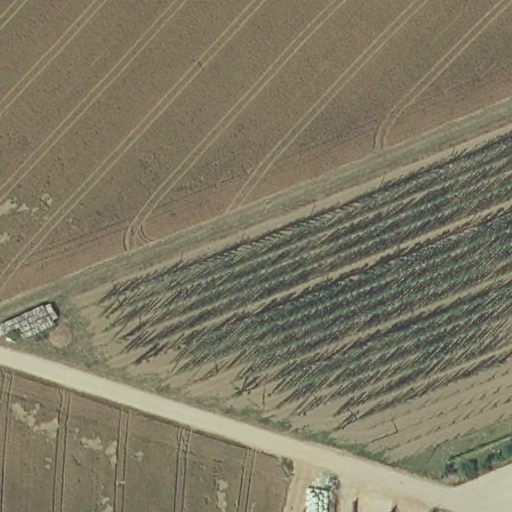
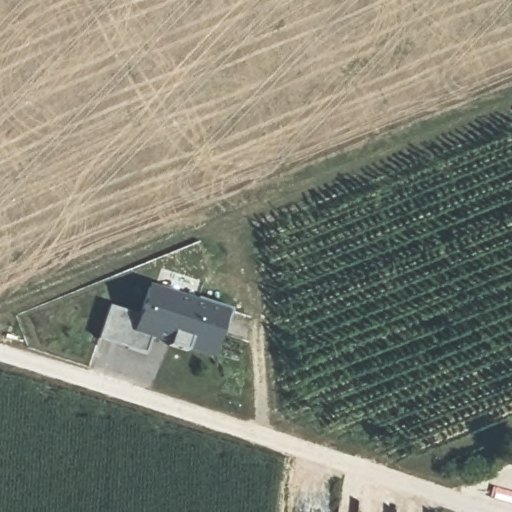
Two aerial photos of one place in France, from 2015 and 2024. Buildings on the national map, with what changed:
new [(99,338),(109,307),(136,317),(147,285),(226,309),(230,312),(223,333),(218,332),(211,357),(150,338),(145,353),(99,338)]

